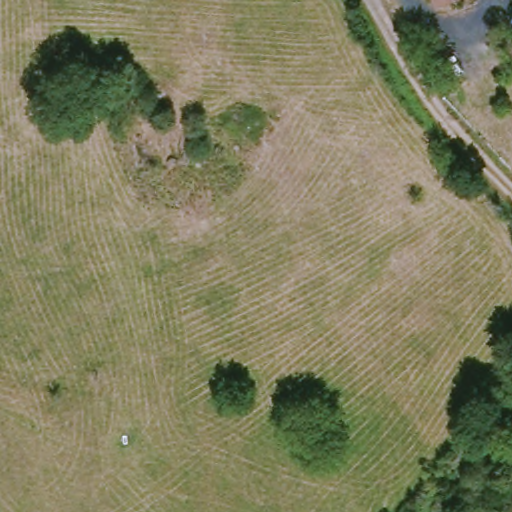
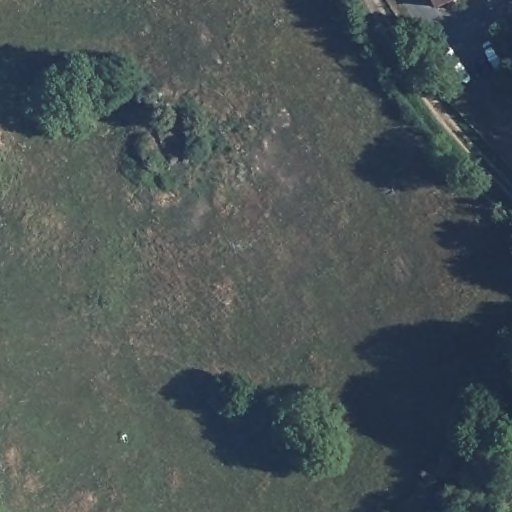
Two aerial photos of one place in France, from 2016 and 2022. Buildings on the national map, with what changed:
unchanged [(446,9),(442,0),(465,0),(446,9)]
unchanged [(506,47),(512,45),(512,58),(510,59),(506,47)]

